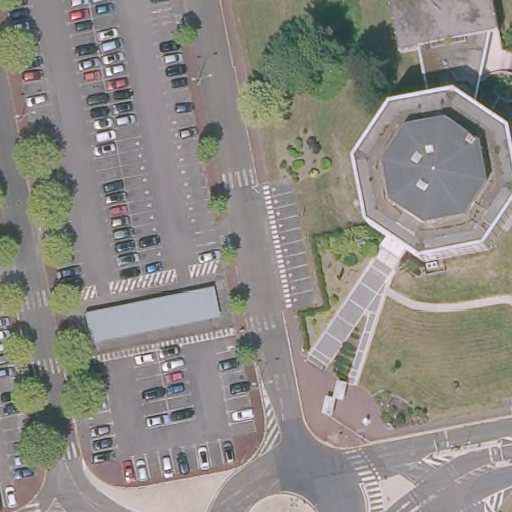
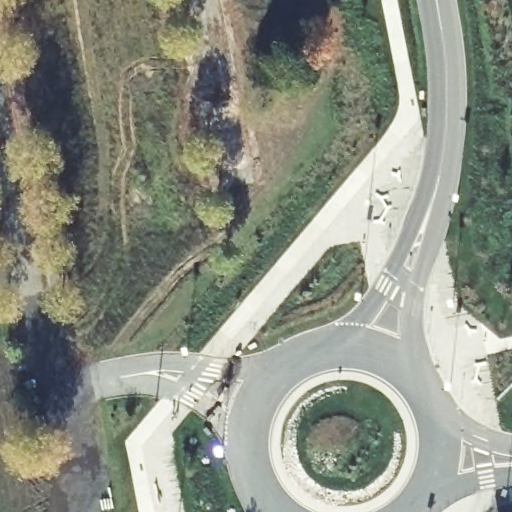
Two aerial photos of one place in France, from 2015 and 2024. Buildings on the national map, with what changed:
demolished [(502,36),(492,39),(486,107),(512,119),(512,220),(497,245),(423,257),(370,222),(355,157),(392,99),(426,91),(416,40),(396,44),(388,0),(495,0),(502,36)]
demolished [(85,312),(216,286),(221,317),(92,345),(85,312)]

